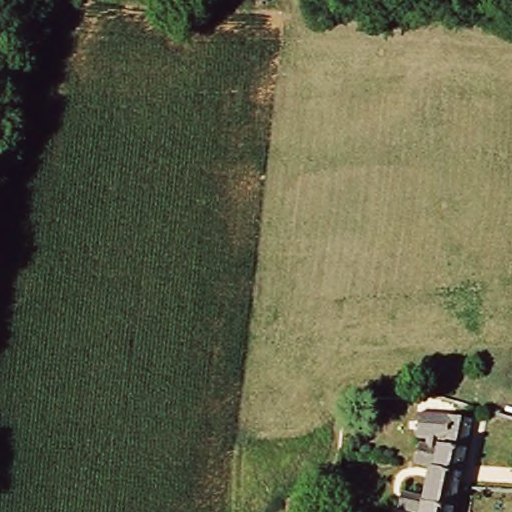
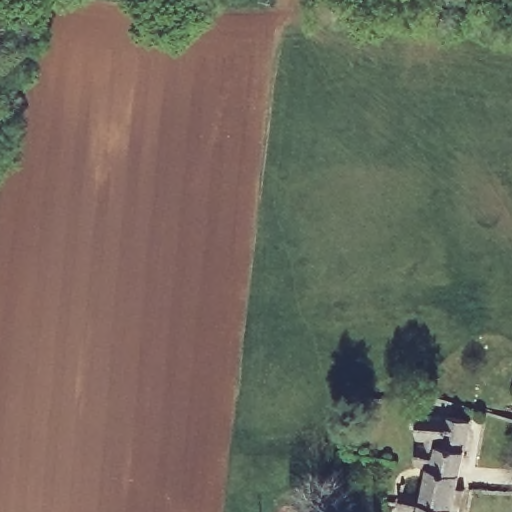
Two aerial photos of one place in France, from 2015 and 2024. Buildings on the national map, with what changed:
unchanged [(431,446),(440,447),(442,440),(413,440),(412,417),(446,416),(469,422),(448,512),(411,512),(412,511),(391,505),(395,489),(415,494),(421,465),(427,465),(431,446)]

